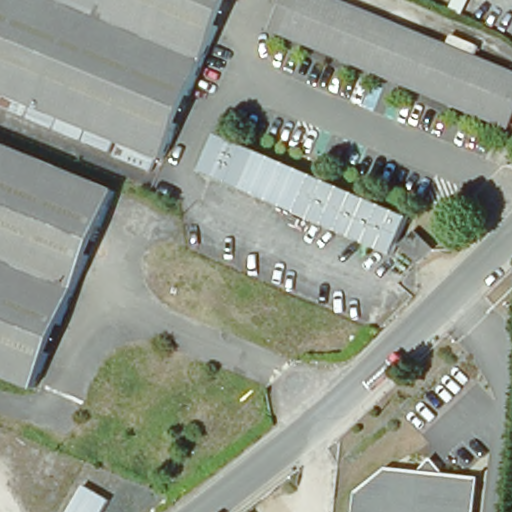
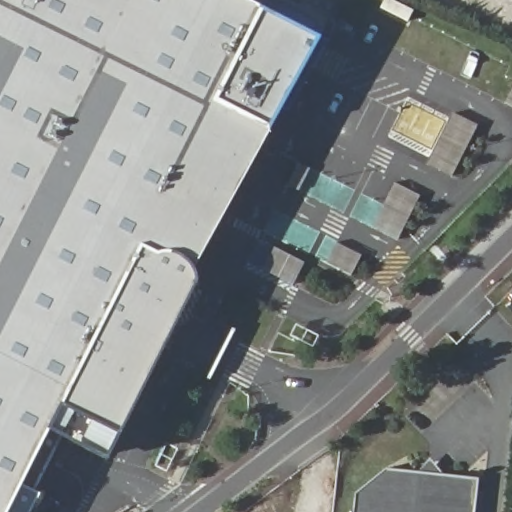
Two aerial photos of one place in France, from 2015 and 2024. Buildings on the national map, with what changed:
demolished [(161,161),(0,92),(0,0),(229,0),(161,161)]
new [(317,32),(124,423),(56,403),(3,512),(0,512),(0,0),(250,0),(317,32)]
demolished [(281,35),(296,0),(333,0),(460,54),(512,75),(512,114),(504,130),(281,35)]
new [(452,176),(428,164),(453,113),(478,125),(452,176)]
demolished [(405,215),(389,253),(197,170),(213,132),(405,215)]
demolished [(113,194),(32,390),(0,377),(0,146),(113,194)]
new [(393,182),(420,195),(399,240),(373,227),(393,182)]
demolished [(400,247),(416,231),(434,249),(419,265),(400,247)]
unchanged [(382,467),(416,470),(428,460),(441,473),(475,475),(472,512),(350,512),(352,492),(382,467)]
demolished [(108,498),(100,512),(64,512),(80,485),(108,498)]

